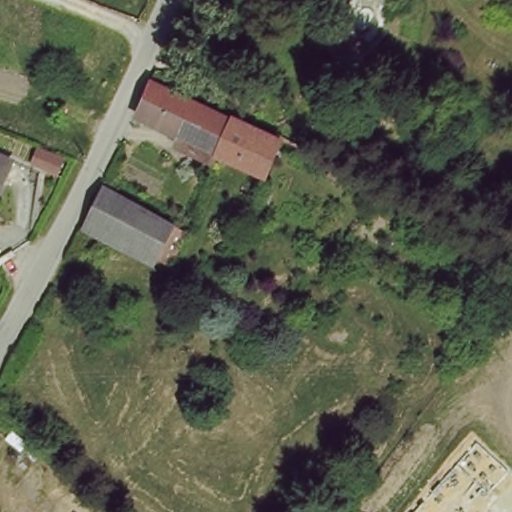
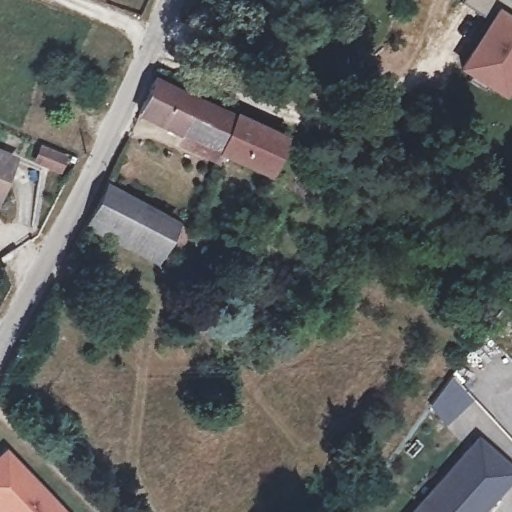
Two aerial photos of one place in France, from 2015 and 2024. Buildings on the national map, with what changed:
new [(501,97),(457,69),(487,22),(461,2),(463,0),(509,0),(512,2),(512,17),(512,18),(512,80),(501,97)]
unchanged [(138,125),(154,90),(238,122),(224,159),(138,125)]
unchanged [(289,142),(274,179),(224,159),(238,122),(289,142)]
unchanged [(0,190),(0,159),(11,164),(0,190)]
unchanged [(180,235),(164,265),(91,225),(105,199),(180,235)]
new [(452,376),(474,399),(446,426),(424,402),(452,376)]
new [(512,471),(512,486),(489,512),(422,512),(483,443),(512,471)]
new [(1,512),(0,511),(0,466),(9,457),(60,512),(1,512)]

